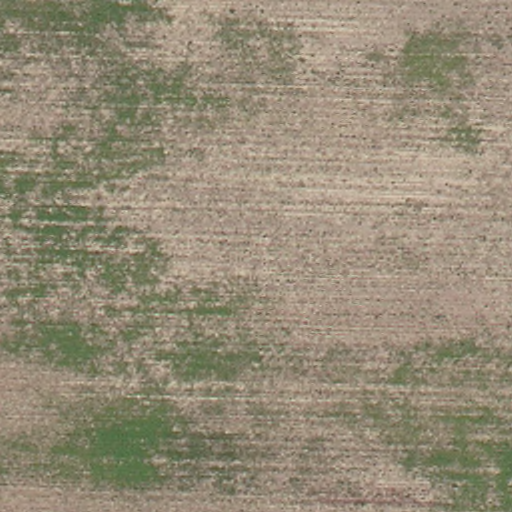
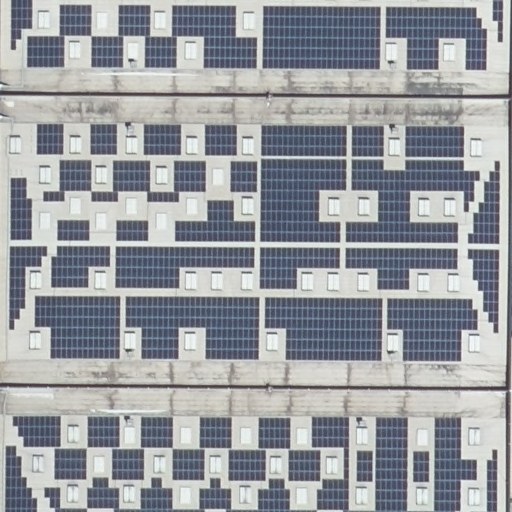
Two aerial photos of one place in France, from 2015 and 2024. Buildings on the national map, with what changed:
new [(512,68),(512,182),(509,182),(508,340),(512,340),(512,504),(506,504),(505,512),(0,512),(0,0),(510,0),(510,68),(512,68)]

